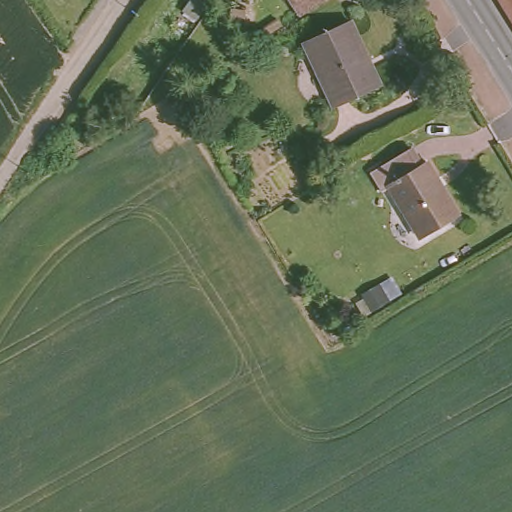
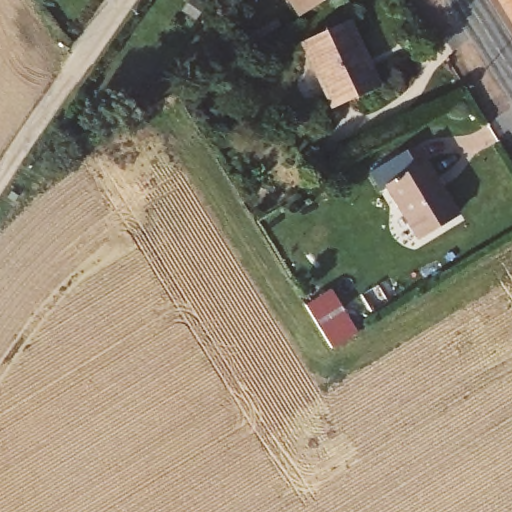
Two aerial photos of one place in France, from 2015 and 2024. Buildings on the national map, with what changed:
unchanged [(307,6),(304,0),(317,0),(307,6)]
unchanged [(512,4),(509,0),(512,0),(512,4)]
unchanged [(385,82),(338,109),(301,48),(350,19),(385,82)]
unchanged [(420,151),(431,171),(439,167),(468,217),(434,237),(406,189),(395,196),(382,174),(420,151)]
new [(330,290),(355,333),(330,348),(304,306),(330,290)]

